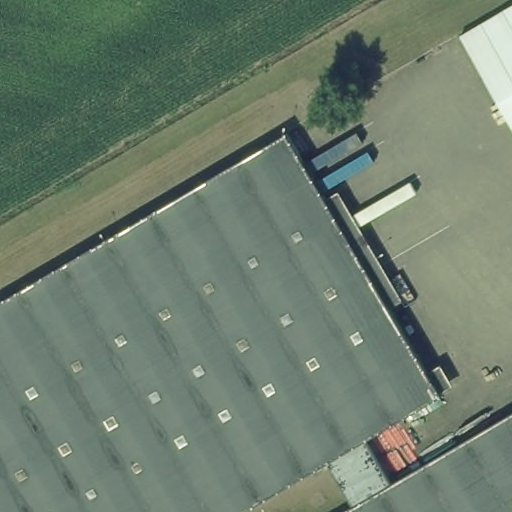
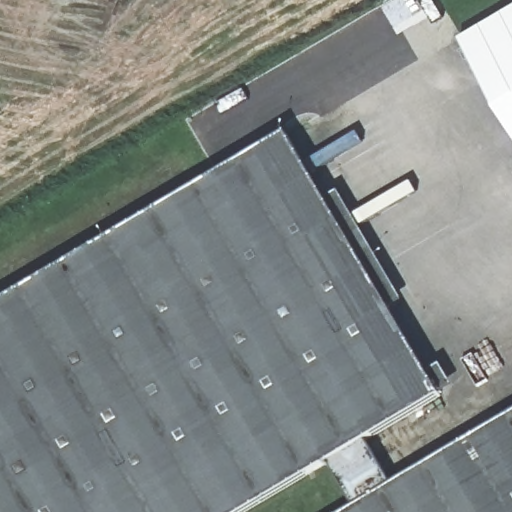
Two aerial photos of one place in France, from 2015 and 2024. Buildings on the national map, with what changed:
unchanged [(512,3),(512,122),(461,34),(512,3)]
unchanged [(331,200),(394,308),(447,396),(371,440),(332,463),(250,512),(0,512),(0,305),(291,133),(331,200)]
unchanged [(343,193),(406,301),(394,308),(331,200),(343,193)]
unchanged [(397,483),(512,416),(512,512),(348,512),(358,506),(397,483)]
unchanged [(371,440),(397,483),(358,506),(332,463),(371,440)]

